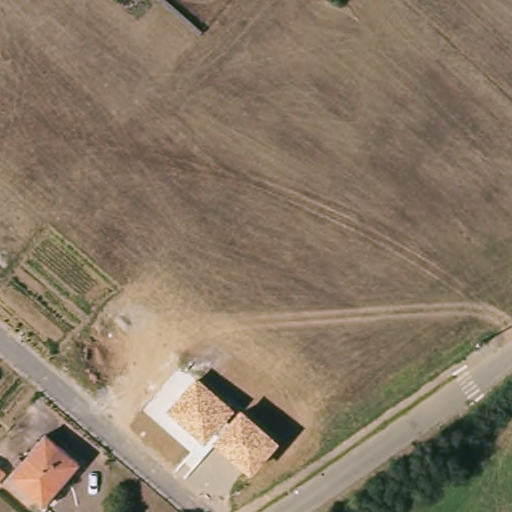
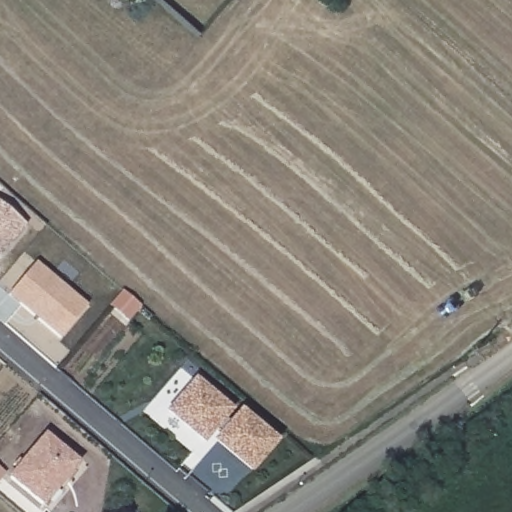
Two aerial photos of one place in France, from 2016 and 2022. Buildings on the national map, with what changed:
new [(36,263),(87,307),(59,339),(8,295),(36,263)]
unchanged [(234,408),(204,443),(166,410),(196,373),(234,408)]
unchanged [(279,440),(250,474),(215,441),(241,408),(279,440)]
unchanged [(20,457),(25,461),(49,436),(84,466),(70,482),(65,479),(44,504),(13,478),(20,470),(14,465),(20,457)]

